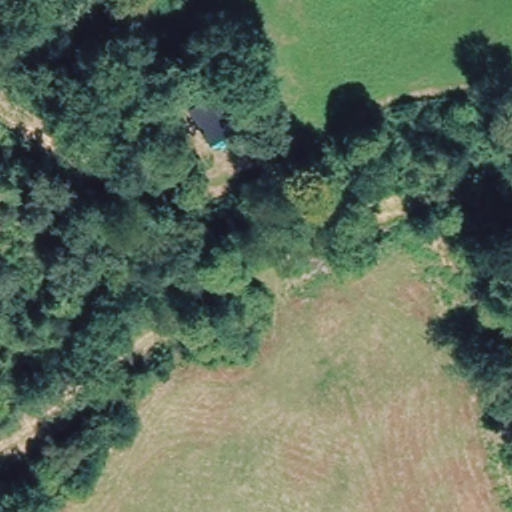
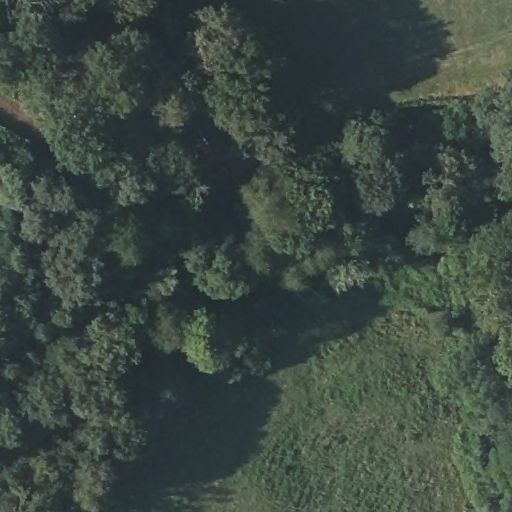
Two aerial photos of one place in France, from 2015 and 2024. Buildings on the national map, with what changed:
unchanged [(236,338),(242,294),(260,296),(254,342),(236,338)]

